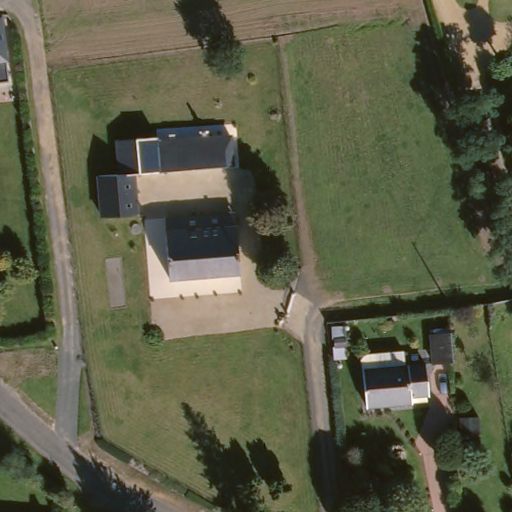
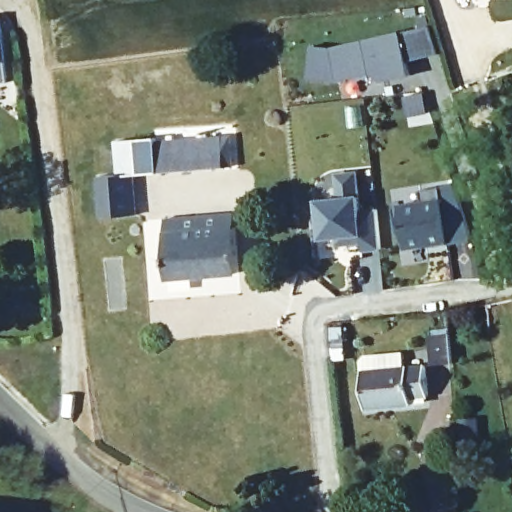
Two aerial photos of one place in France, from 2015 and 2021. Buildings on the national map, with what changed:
new [(438,52),(407,61),(410,75),(383,81),(371,74),(338,82),(307,78),(311,45),(332,47),(400,31),(429,26),(438,52)]
unchanged [(131,174),(131,217),(96,218),(95,172),(112,171),(112,141),(153,139),(154,133),(232,130),(233,168),(131,174)]
new [(360,194),(362,211),(377,208),(381,249),(364,251),(363,244),(337,246),(338,238),(321,239),(318,199),(339,197),(335,173),(357,171),(360,194)]
new [(472,240),(449,245),(430,248),(430,246),(407,249),(404,228),(397,229),(394,207),(400,206),(400,204),(423,201),(421,190),(439,187),(454,182),(472,240)]
unchanged [(238,210),(239,230),(161,237),(159,217),(238,210)]
unchanged [(239,230),(243,271),(216,273),(165,279),(161,237),(239,230)]
unchanged [(462,357),(438,358),(437,328),(461,327),(462,357)]
unchanged [(368,367),(381,365),(380,349),(413,345),(414,359),(428,357),(432,391),(418,392),(419,403),(373,407),(368,367)]

